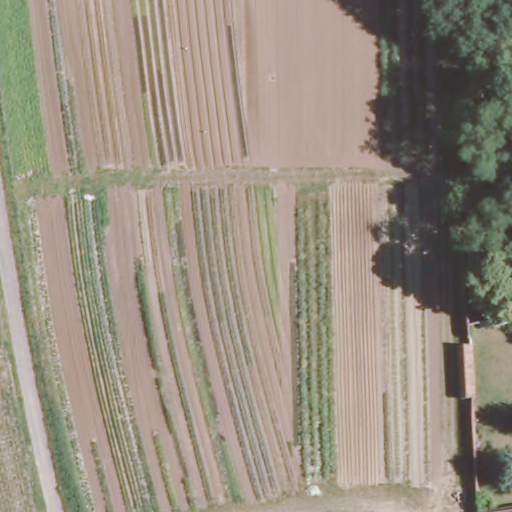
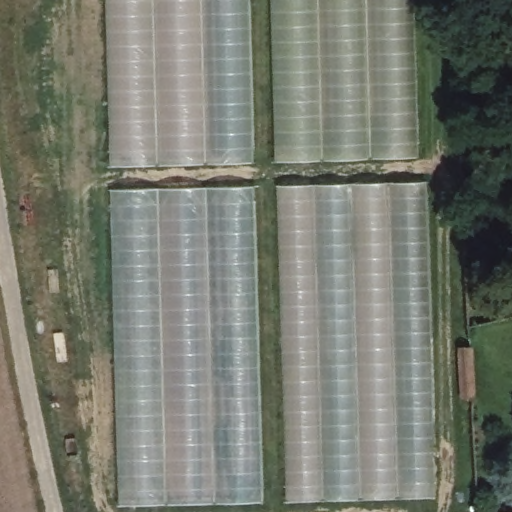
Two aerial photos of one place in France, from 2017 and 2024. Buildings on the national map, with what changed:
new [(107,0),(250,0),(254,164),(110,165),(107,0)]
new [(417,162),(273,164),(266,0),(411,0),(417,162)]
new [(422,186),(439,506),(284,504),(276,190),(422,186)]
new [(111,190),(254,187),(261,503),(121,505),(111,190)]
unchanged [(462,408),(459,353),(469,353),(472,407),(462,408)]
unchanged [(512,512),(481,512),(512,508),(512,512)]

